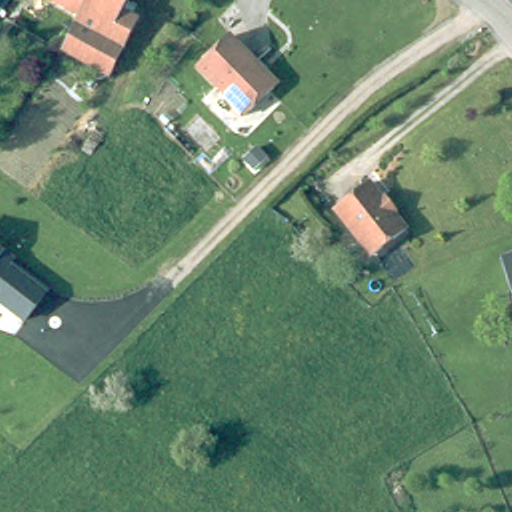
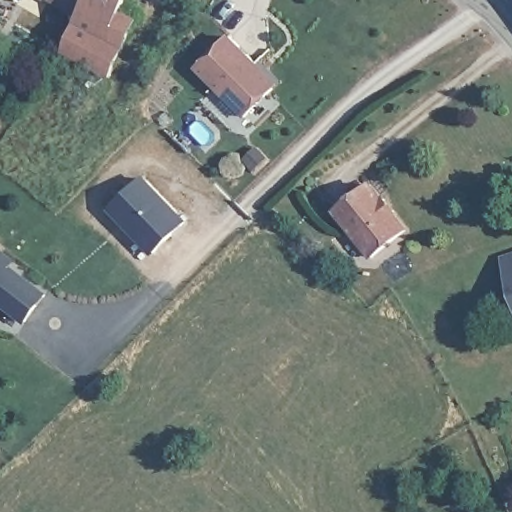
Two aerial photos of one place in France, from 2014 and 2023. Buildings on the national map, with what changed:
unchanged [(41,0),(89,0),(129,0),(123,11),(140,20),(109,78),(64,53),(78,22),(79,20),(41,0)]
unchanged [(275,85),(272,89),(244,117),(196,70),(229,38),(254,63),(275,85)]
new [(152,255),(108,208),(144,175),(187,222),(152,255)]
unchanged [(383,199),(393,210),(390,215),(402,230),(369,257),(334,211),(367,185),(380,201),(383,199)]
unchanged [(16,260),(12,266),(48,293),(25,324),(0,304),(0,249),(7,254),(16,260)]
unchanged [(499,255),(512,251),(512,300),(499,255)]

